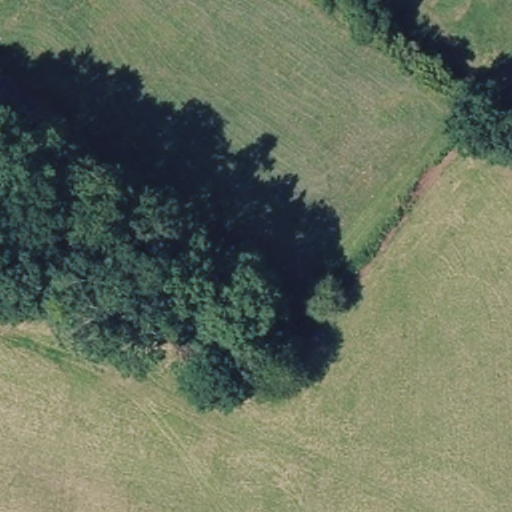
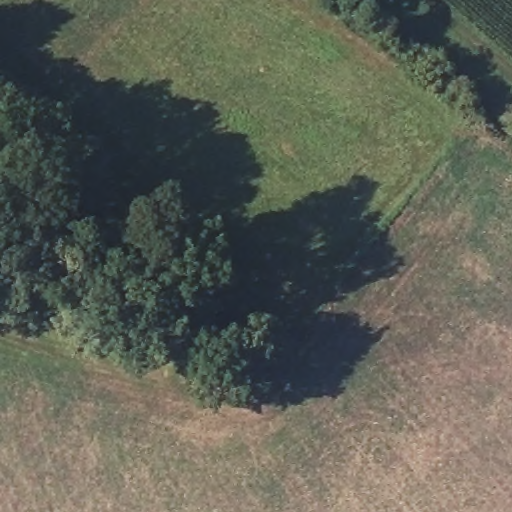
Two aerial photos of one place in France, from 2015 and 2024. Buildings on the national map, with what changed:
unchanged [(0,80),(1,78),(62,119),(38,145),(0,115),(0,80)]

